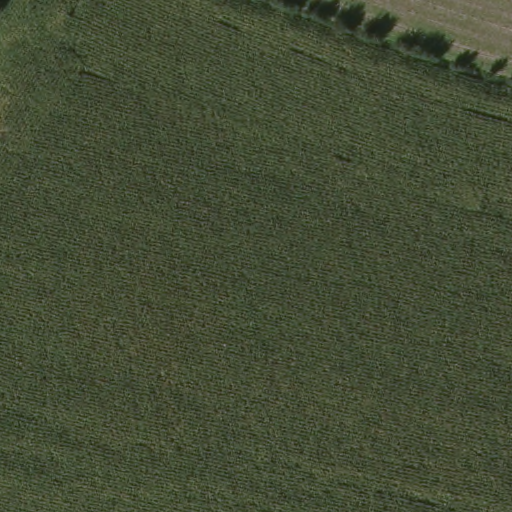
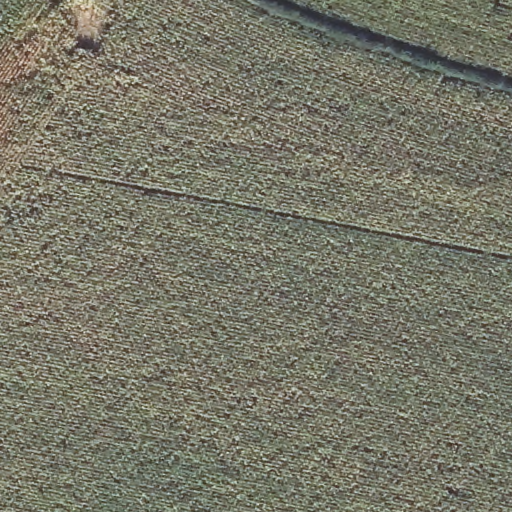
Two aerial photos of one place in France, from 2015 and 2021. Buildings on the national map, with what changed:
[]

